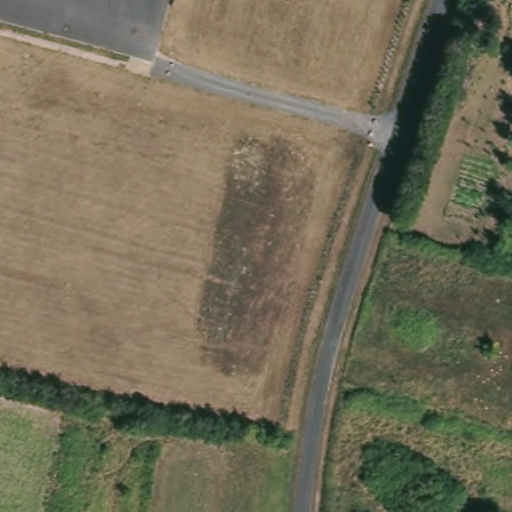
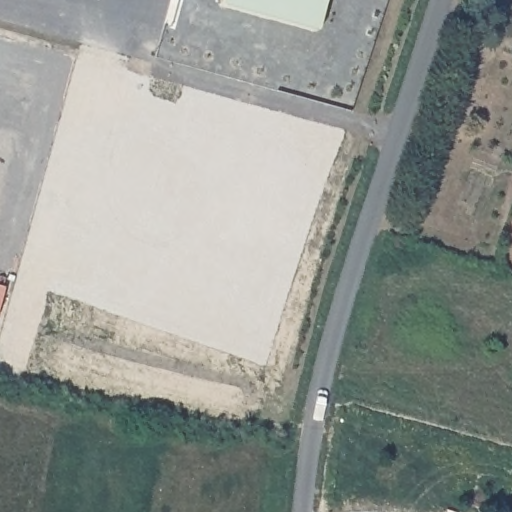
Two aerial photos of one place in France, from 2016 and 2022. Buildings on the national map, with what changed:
new [(328,0),(320,30),(221,3),(222,0),(328,0)]

